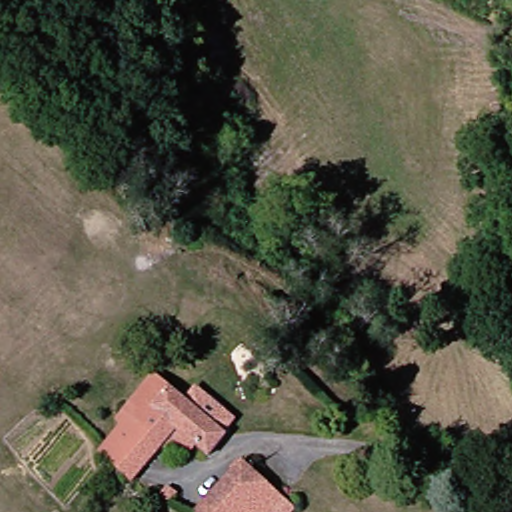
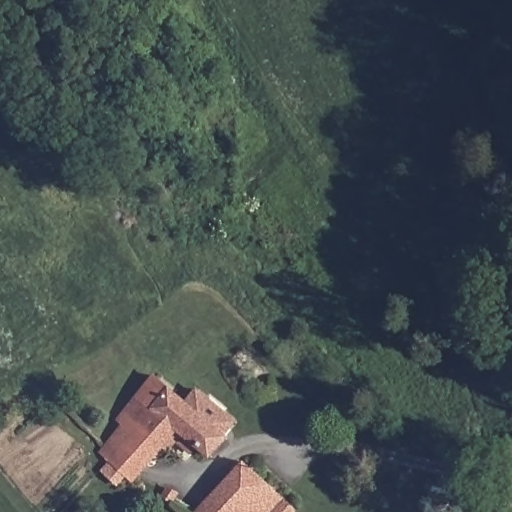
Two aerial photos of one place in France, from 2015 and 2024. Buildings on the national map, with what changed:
unchanged [(186,436),(138,486),(110,460),(145,418),(140,413),(171,376),(240,440),(220,463),(186,436)]
unchanged [(205,511),(256,462),(299,512),(206,512),(205,511)]

